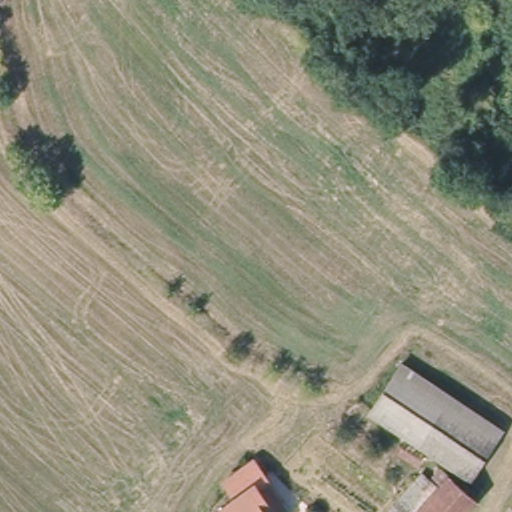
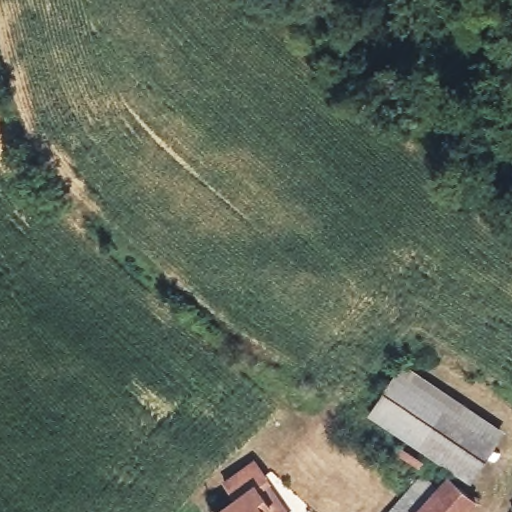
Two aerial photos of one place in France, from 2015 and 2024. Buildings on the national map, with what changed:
unchanged [(376,407),(398,368),(498,428),(488,450),(477,471),(455,457),(376,407)]
unchanged [(222,476),(255,456),(266,475),(255,481),(259,489),(269,484),(285,512),(212,512),(210,510),(233,496),(222,476)]
unchanged [(435,489),(450,472),(479,500),(468,512),(392,512),(422,478),(435,489)]

